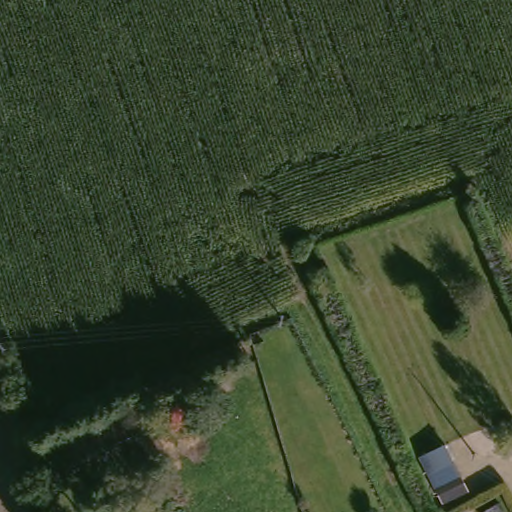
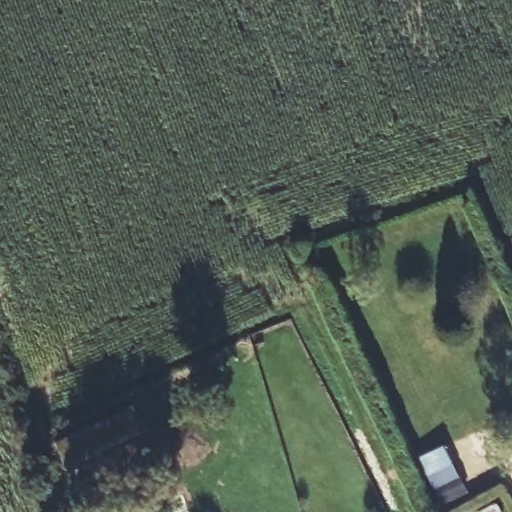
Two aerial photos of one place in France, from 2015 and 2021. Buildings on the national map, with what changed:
unchanged [(293,342),(299,354),(275,365),(269,352),(293,342)]
unchanged [(134,410),(144,433),(67,466),(58,443),(134,410)]
unchanged [(425,461),(450,448),(458,463),(433,476),(425,461)]
unchanged [(440,490),(465,478),(472,491),(447,504),(440,490)]

